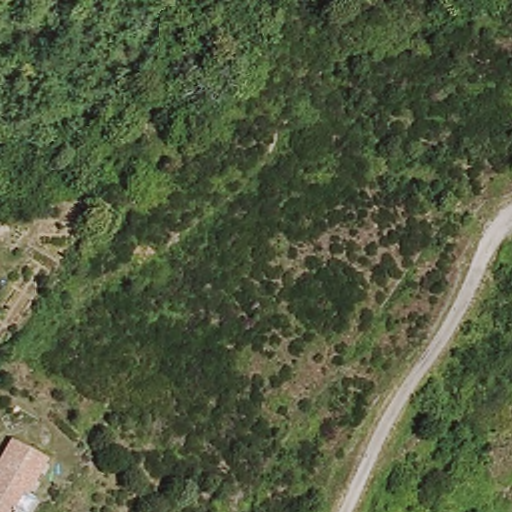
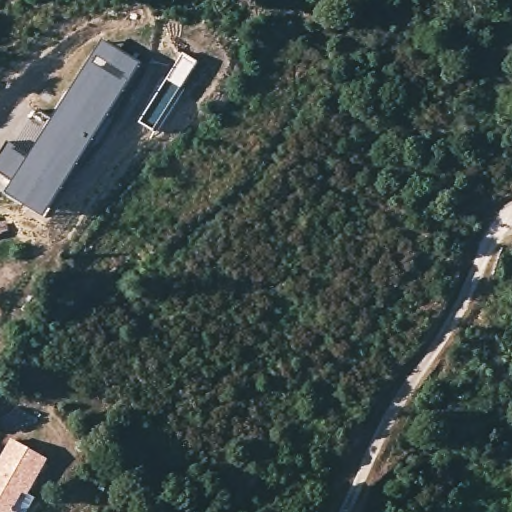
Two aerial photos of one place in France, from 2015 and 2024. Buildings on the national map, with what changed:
new [(7,195),(15,182),(0,174),(0,154),(7,142),(30,156),(103,40),(144,66),(47,221),(7,195)]
unchanged [(137,267),(125,254),(145,239),(156,252),(137,267)]
unchanged [(50,459),(28,493),(37,500),(31,512),(0,512),(0,458),(12,437),(50,459)]

